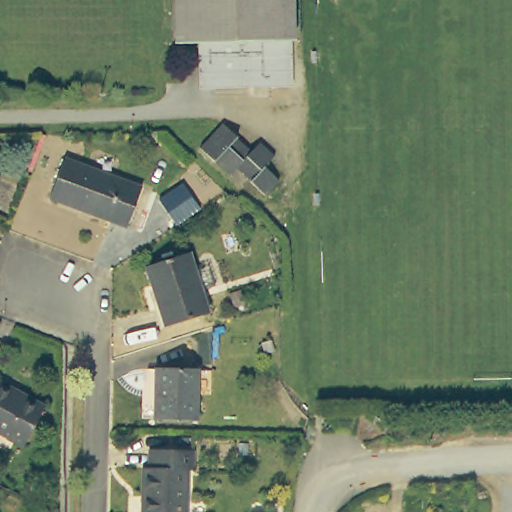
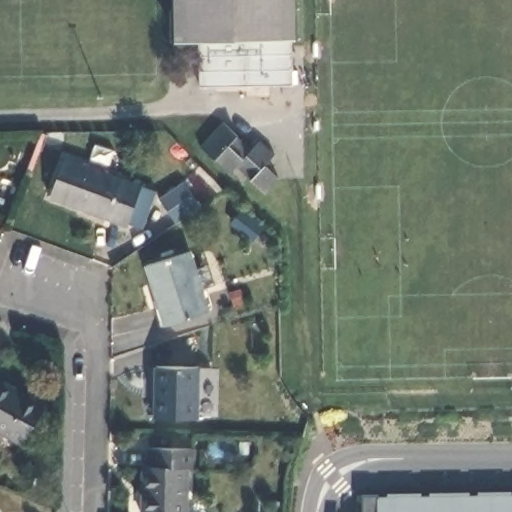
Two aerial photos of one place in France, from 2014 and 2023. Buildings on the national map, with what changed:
unchanged [(183,41),(182,0),(292,0),(292,39),(183,41)]
unchanged [(279,181),(266,194),(239,169),(229,178),(200,148),(223,125),(236,138),(250,151),(259,141),(274,155),(266,165),(265,167),(279,181)]
unchanged [(141,189),(125,229),(48,198),(64,160),(141,189)]
unchanged [(175,224),(158,200),(183,181),(200,208),(175,224)]
unchanged [(208,311),(165,326),(146,265),(188,251),(208,311)]
unchanged [(195,421),(153,420),(154,370),(196,370),(195,421)]
unchanged [(24,447),(0,434),(0,387),(44,410),(24,447)]
unchanged [(190,449),(189,465),(184,468),(183,512),(137,512),(137,468),(145,467),(145,449),(190,449)]
new [(362,497),(379,497),(512,496),(512,512),(362,512),(362,497)]

